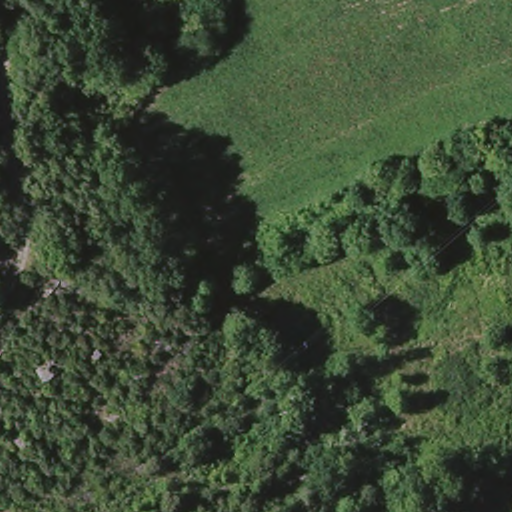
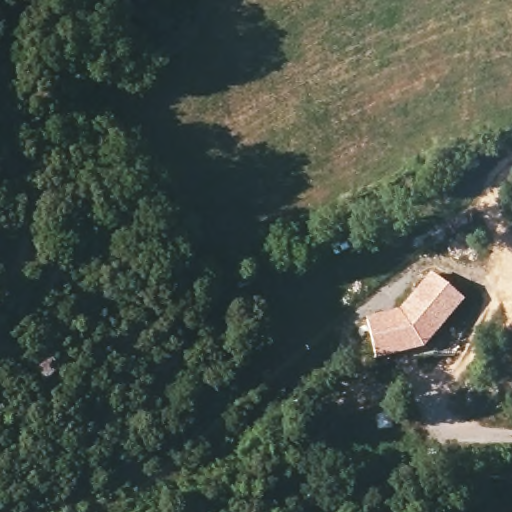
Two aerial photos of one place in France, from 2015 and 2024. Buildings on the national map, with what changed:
new [(398,310),(432,272),(463,299),(425,348),(376,360),(365,318),(398,310)]

